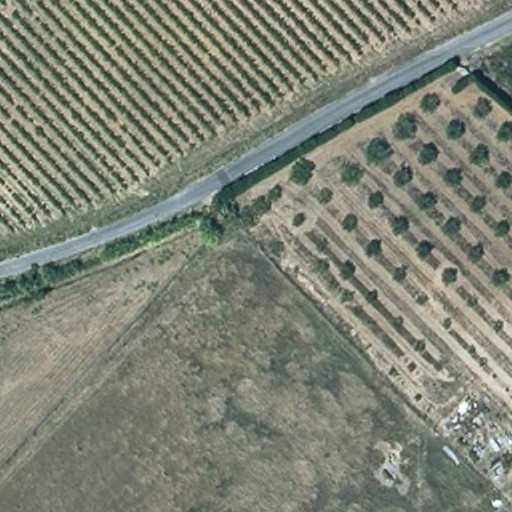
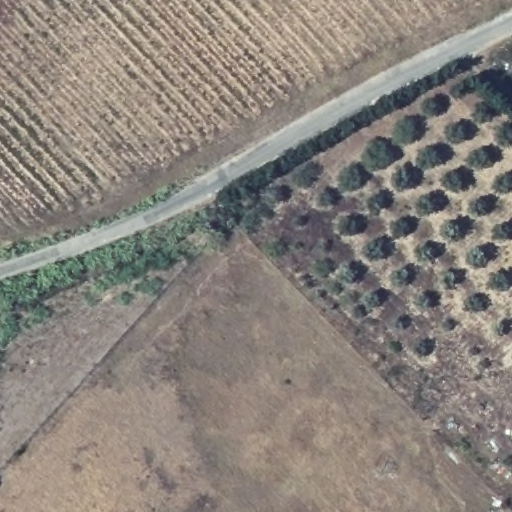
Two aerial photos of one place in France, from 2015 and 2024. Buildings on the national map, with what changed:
[]

